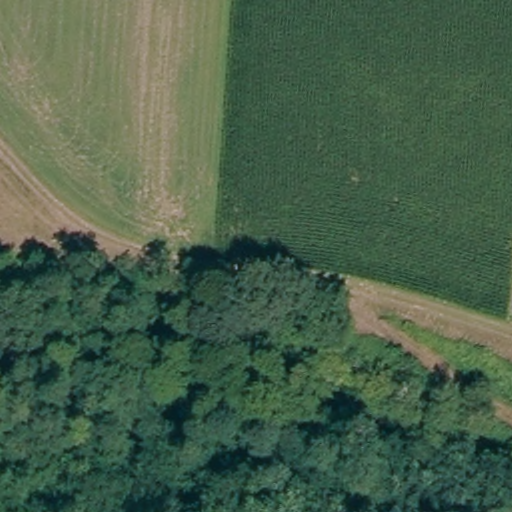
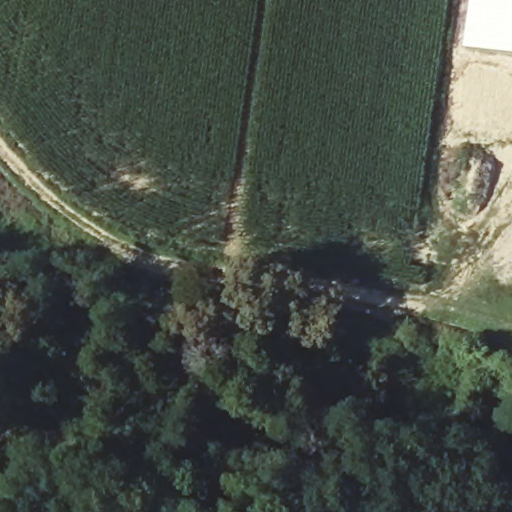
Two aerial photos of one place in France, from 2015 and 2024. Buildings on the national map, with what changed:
new [(512,0),(512,57),(467,51),(473,0),(512,0)]

